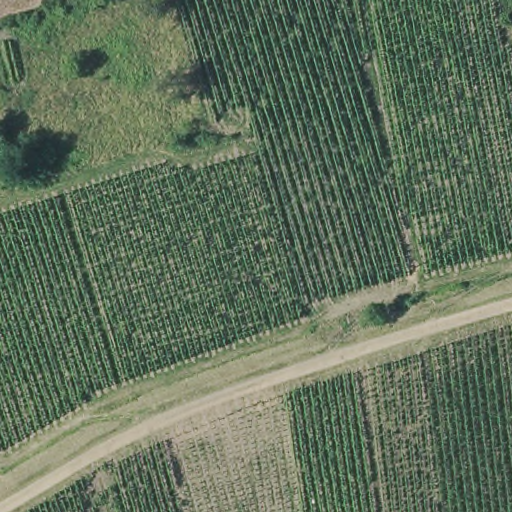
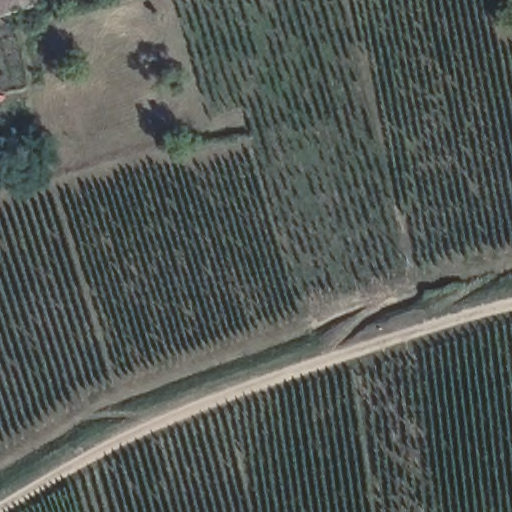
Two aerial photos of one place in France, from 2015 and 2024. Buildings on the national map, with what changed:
unchanged [(0,13),(0,0),(42,0),(15,8),(0,13)]

